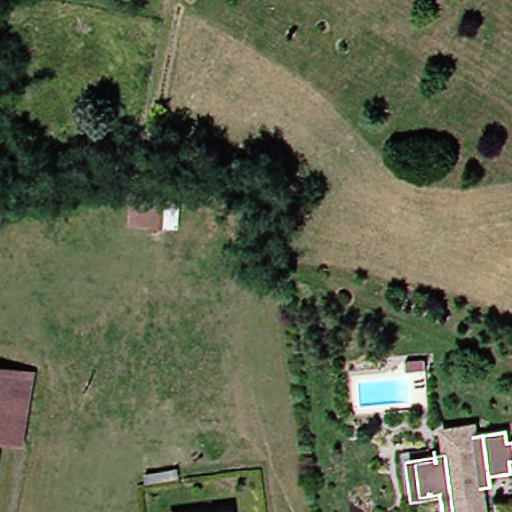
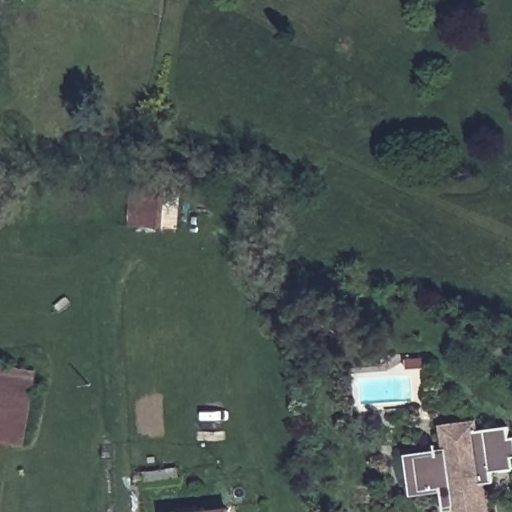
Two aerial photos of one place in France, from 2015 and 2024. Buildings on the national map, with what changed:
unchanged [(167,175),(166,185),(185,186),(182,223),(134,221),(137,173),(167,175)]
unchanged [(27,445),(5,442),(0,471),(0,368),(38,374),(27,445)]
unchanged [(445,505),(443,486),(424,487),(409,490),(405,447),(438,443),(440,453),(450,452),(446,426),(477,422),(478,430),(510,426),(512,437),(512,469),(493,471),(495,482),(484,483),(486,500),(487,512),(456,512),(455,503),(445,505)]

